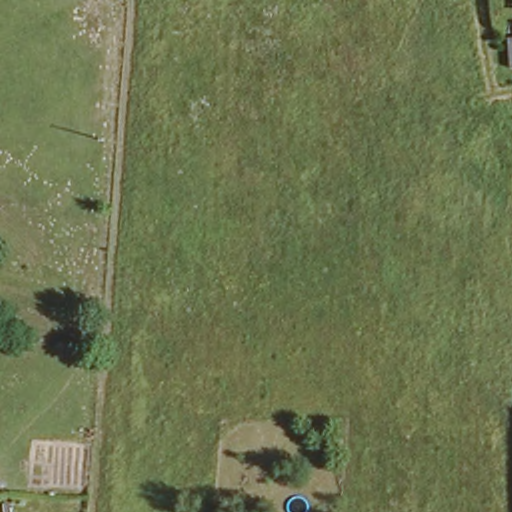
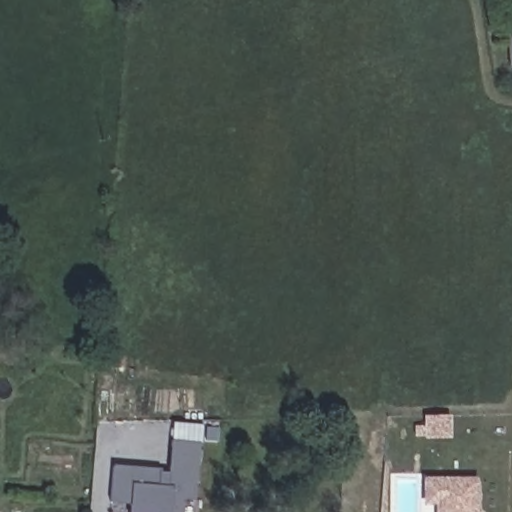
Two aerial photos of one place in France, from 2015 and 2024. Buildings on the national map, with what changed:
new [(136,505),(112,504),(116,468),(163,470),(163,471),(172,472),(178,424),(205,426),(199,497),(185,496),(185,512),(136,512),(136,505)]
new [(442,501),(430,501),(430,479),(479,480),(478,511),(472,512),(442,512),(442,501)]

